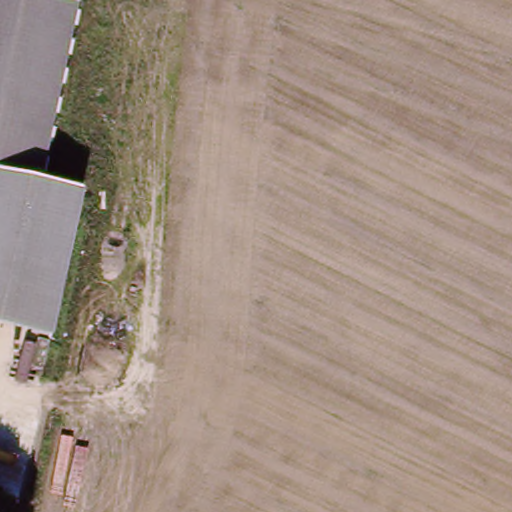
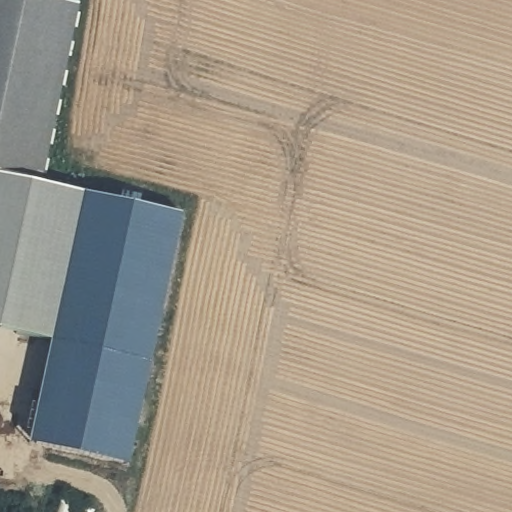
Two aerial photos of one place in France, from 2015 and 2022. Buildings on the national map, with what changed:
new [(78,3),(69,42),(0,20),(0,0),(64,0),(78,3)]
unchanged [(69,42),(33,188),(32,191),(0,183),(0,20),(69,42)]
new [(181,214),(128,463),(29,442),(51,338),(59,340),(89,204),(32,191),(33,188),(34,181),(181,214)]
unchanged [(32,191),(89,204),(59,340),(0,327),(0,183),(32,191)]

